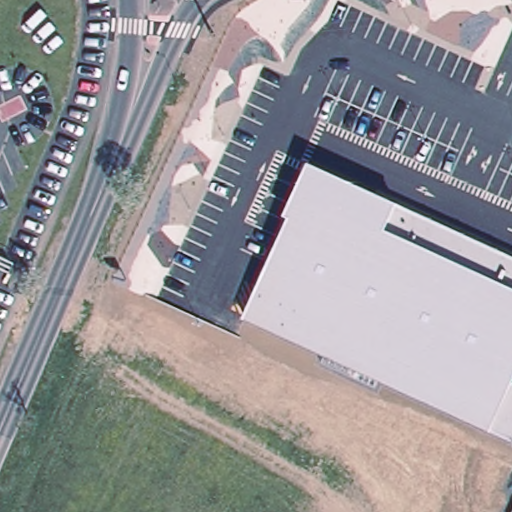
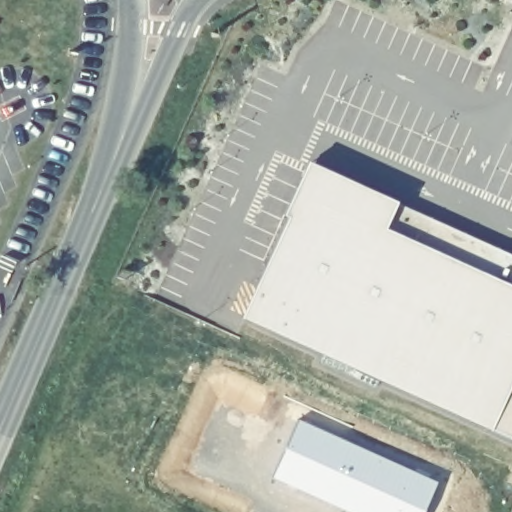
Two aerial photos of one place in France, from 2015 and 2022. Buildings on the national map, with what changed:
unchanged [(241,319),(288,219),(282,215),(307,161),(395,203),(512,256),(512,439),(241,319)]
new [(439,484),(427,512),(350,512),(274,478),(301,419),(439,484)]

